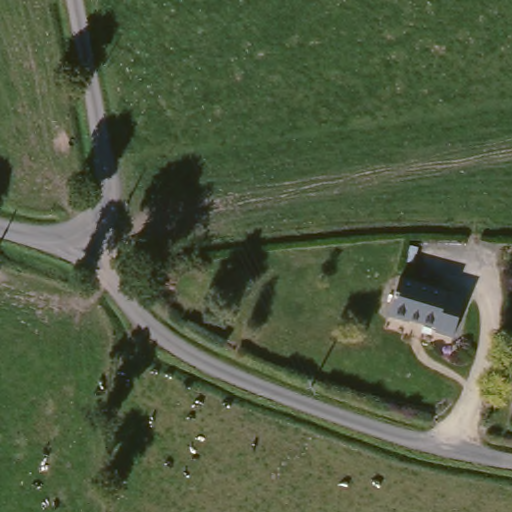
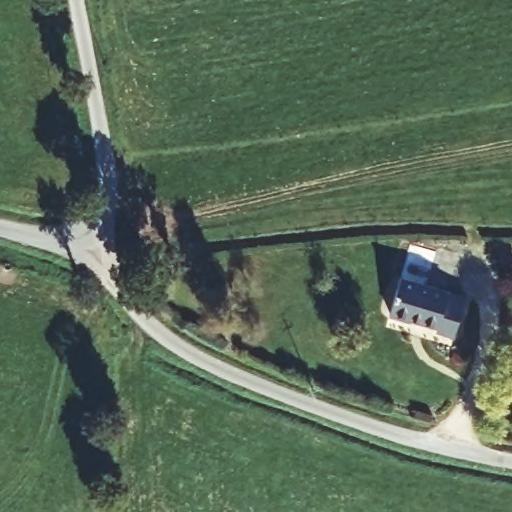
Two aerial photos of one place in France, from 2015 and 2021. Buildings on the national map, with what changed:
unchanged [(465,290),(460,337),(445,337),(445,330),(392,327),(396,285),(465,290)]

